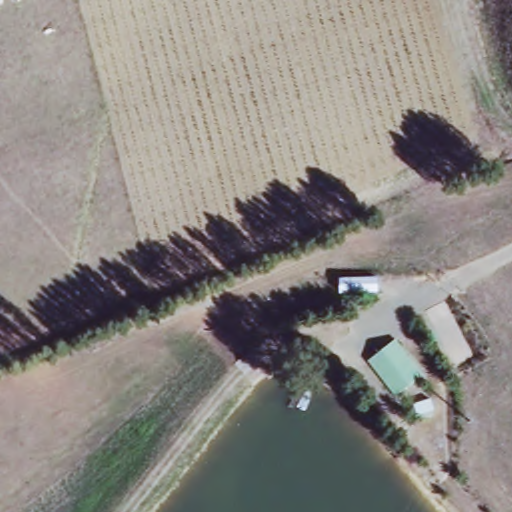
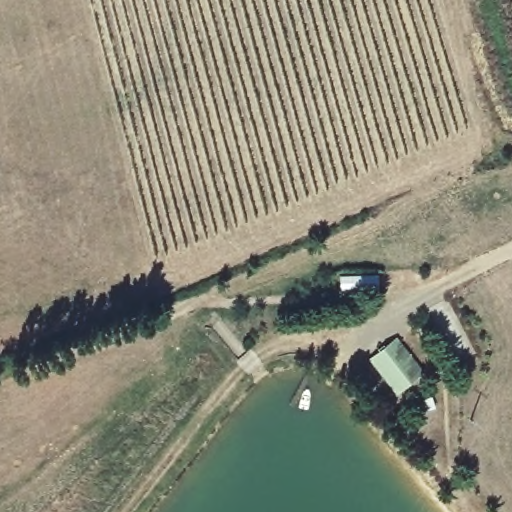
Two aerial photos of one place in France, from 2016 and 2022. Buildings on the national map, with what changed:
unchanged [(397,335),(425,369),(396,392),(367,356),(397,335)]

